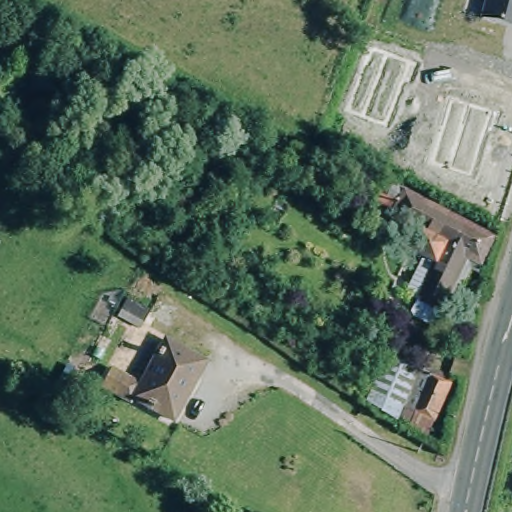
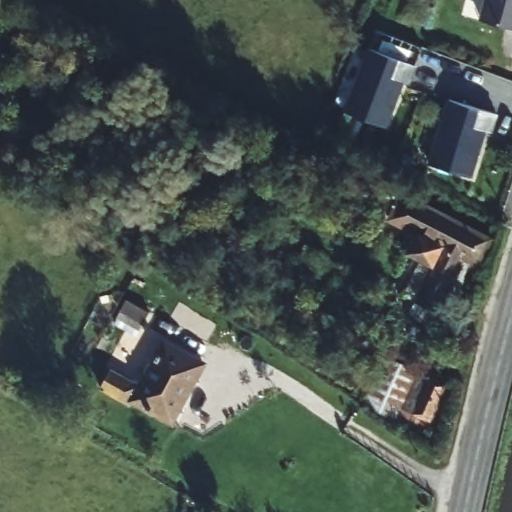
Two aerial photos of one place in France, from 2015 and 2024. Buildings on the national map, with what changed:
unchanged [(481,18),(486,0),(512,0),(512,27),(481,18)]
new [(410,64),(390,128),(348,114),(370,53),(410,64)]
new [(492,114),(472,178),(430,164),(452,103),(492,114)]
unchanged [(215,149),(237,165),(200,234),(173,214),(215,149)]
unchanged [(475,229),(492,238),(479,263),(465,255),(430,328),(406,314),(412,303),(400,297),(421,254),(402,244),(410,228),(390,217),(402,193),(475,229)]
unchanged [(167,425),(131,403),(127,409),(98,393),(108,376),(137,393),(167,339),(202,361),(167,425)]
unchanged [(393,410),(381,404),(365,397),(358,393),(375,354),(412,372),(408,379),(393,410)]
unchanged [(408,379),(412,372),(442,387),(420,438),(401,429),(407,417),(393,410),(408,379)]

